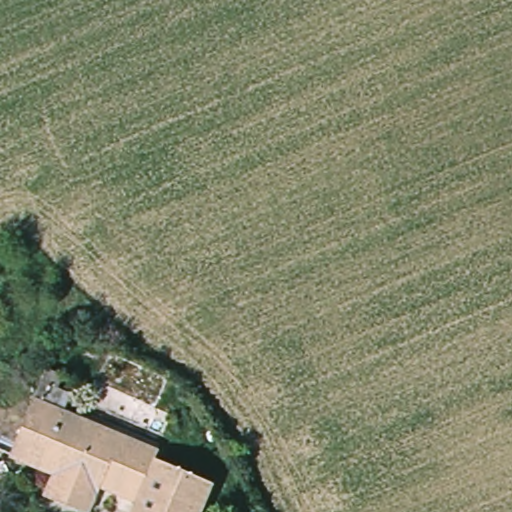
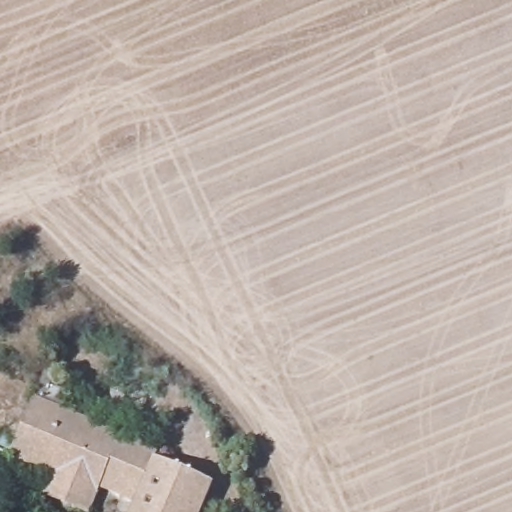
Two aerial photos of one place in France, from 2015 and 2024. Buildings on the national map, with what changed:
unchanged [(35,397),(159,452),(156,458),(212,481),(198,512),(133,512),(137,504),(101,487),(94,503),(89,512),(88,512),(45,492),(50,482),(53,474),(12,453),(35,397)]

